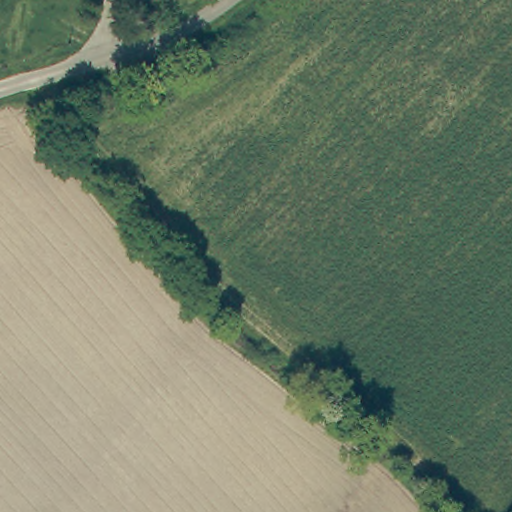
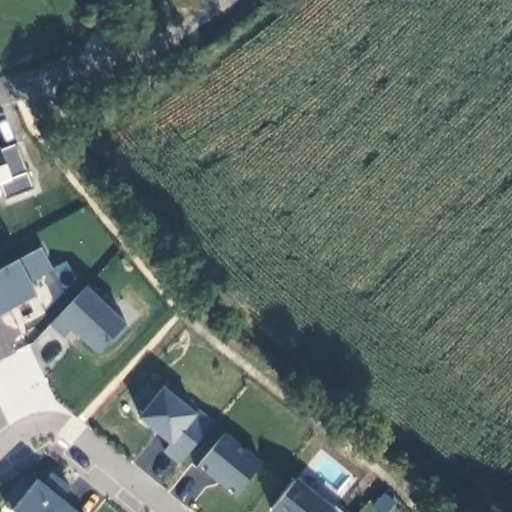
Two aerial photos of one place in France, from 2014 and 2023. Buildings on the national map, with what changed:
new [(2,201),(0,195),(0,148),(19,141),(36,188),(2,201)]
new [(30,283),(37,295),(0,316),(0,270),(19,260),(43,248),(53,270),(30,283)]
new [(99,354),(71,329),(64,337),(51,326),(58,316),(85,286),(125,323),(99,354)]
new [(0,326),(0,316),(4,323),(0,326)]
new [(195,414),(200,411),(214,421),(179,466),(164,452),(169,444),(138,418),(164,386),(195,414)]
new [(234,497),(197,468),(226,434),(262,462),(234,497)]
new [(62,499),(74,510),(77,512),(15,512),(12,509),(5,505),(24,482),(30,487),(39,479),(43,483),(51,472),(70,488),(62,499)]
new [(340,512),(271,512),(299,478),(339,511),(340,512)]

